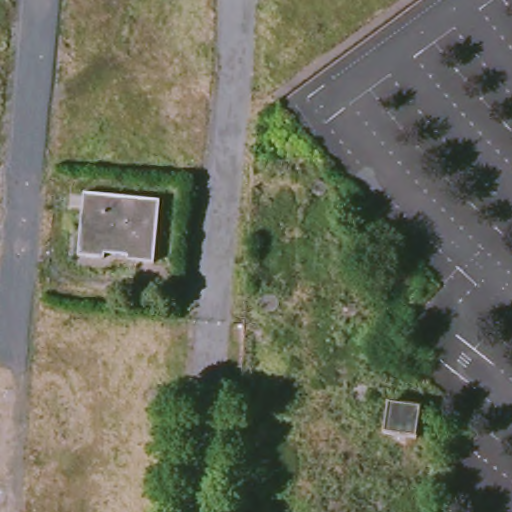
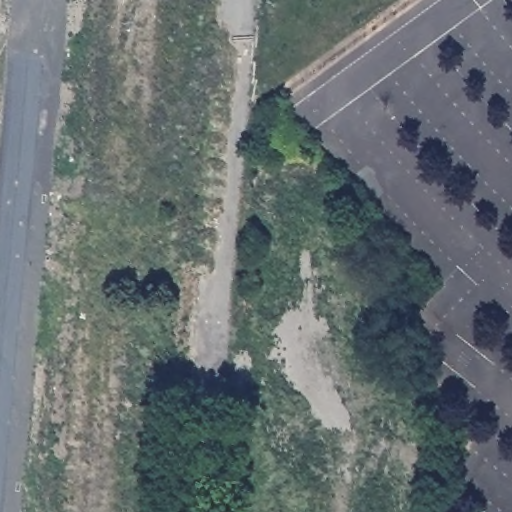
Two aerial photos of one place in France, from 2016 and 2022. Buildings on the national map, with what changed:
demolished [(87,192),(163,198),(163,200),(157,263),(81,255),(87,192)]
unchanged [(421,407),(417,438),(383,433),(388,402),(421,407)]

